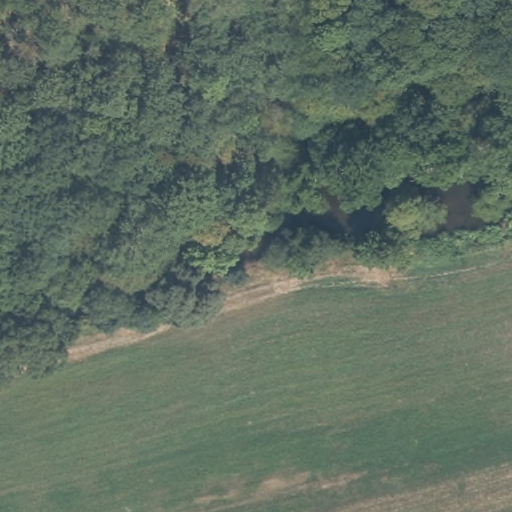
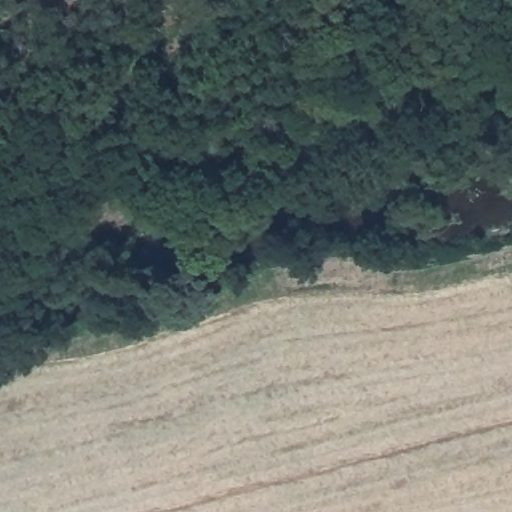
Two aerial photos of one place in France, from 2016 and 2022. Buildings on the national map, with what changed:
[]

